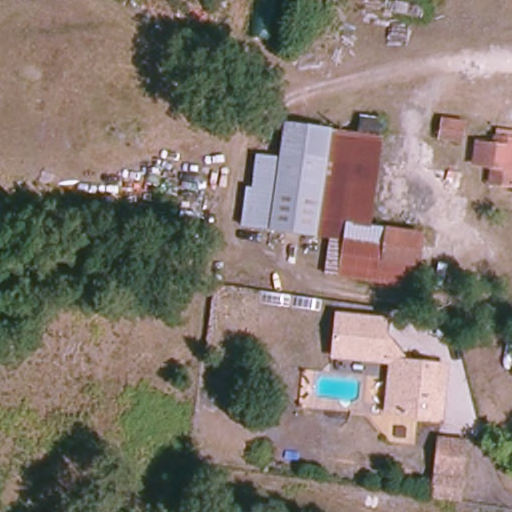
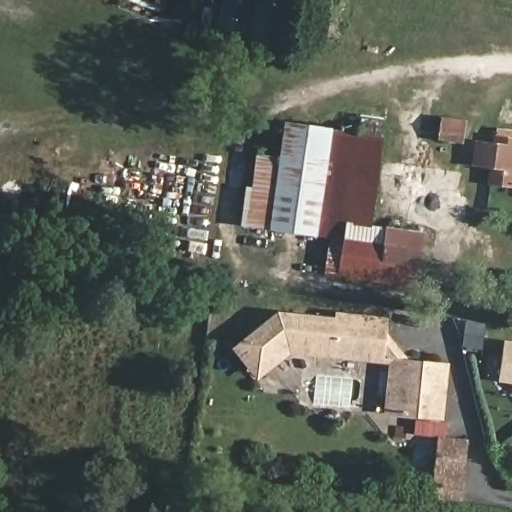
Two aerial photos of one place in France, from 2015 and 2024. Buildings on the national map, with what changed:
unchanged [(346,228),(361,137),(365,111),(367,101),(389,103),(387,114),(368,232),(346,228)]
unchanged [(457,144),(440,141),(442,117),(461,120),(457,144)]
unchanged [(262,231),(277,151),(282,126),(325,132),(308,238),(262,231)]
unchanged [(379,284),(318,275),(322,240),(308,238),(325,132),(361,137),(346,228),(368,232),(388,235),(418,240),(416,255),(410,289),(379,284)]
unchanged [(512,184),(511,187),(495,185),(501,141),(512,142),(512,184)]
unchanged [(250,189),(255,147),(277,151),(262,230),(239,226),(245,187),(250,189)]
new [(290,353),(256,381),(231,348),(277,312),(330,317),(330,348),(339,359),(290,353)]
unchanged [(387,414),(389,361),(356,360),(339,359),(330,348),(330,317),(381,321),(380,335),(402,362),(410,362),(410,355),(420,356),(420,362),(435,363),(441,363),(438,415),(432,415),(387,414)]
new [(512,381),(503,380),(509,343),(512,344),(512,381)]
unchanged [(465,498),(435,497),(437,440),(467,442),(465,498)]

